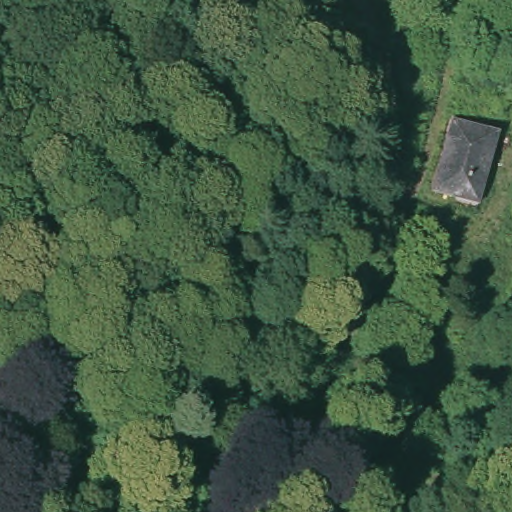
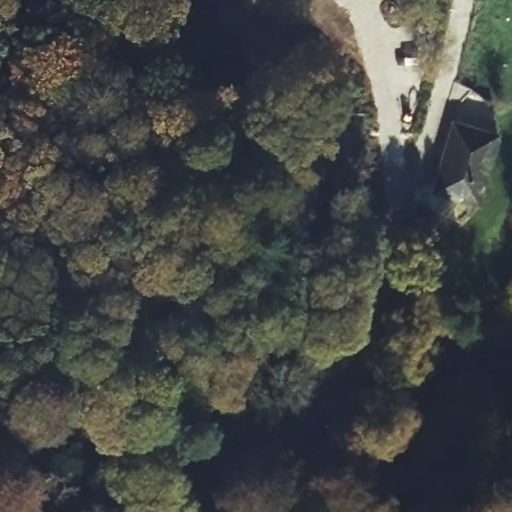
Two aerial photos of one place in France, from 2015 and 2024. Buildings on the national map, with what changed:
unchanged [(500,136),(471,214),(443,204),(446,194),(428,187),(453,118),(500,136)]

